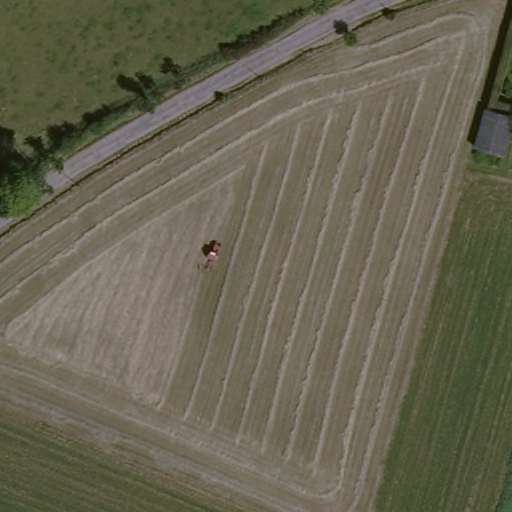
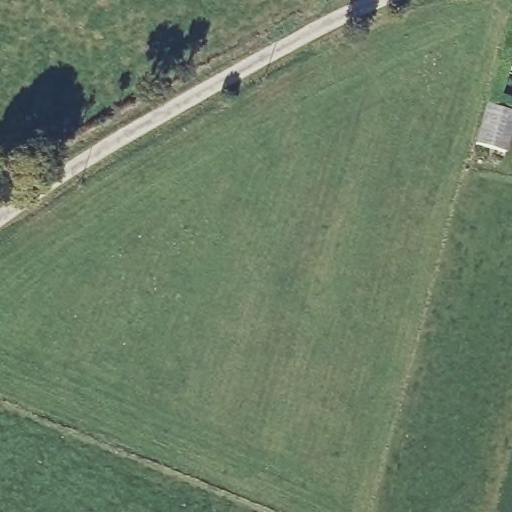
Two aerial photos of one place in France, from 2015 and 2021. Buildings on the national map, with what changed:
unchanged [(512,117),(512,124),(504,152),(475,143),(484,110),(512,117)]

